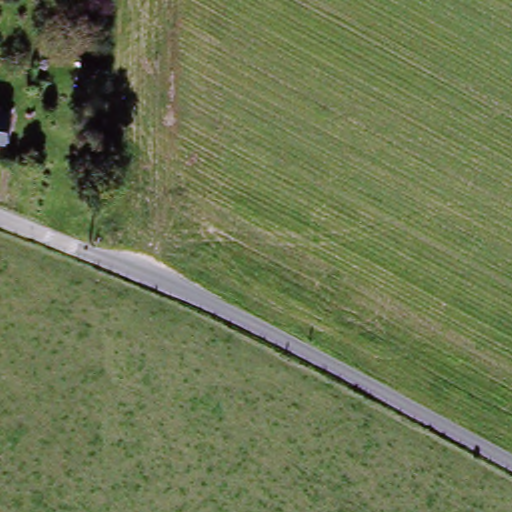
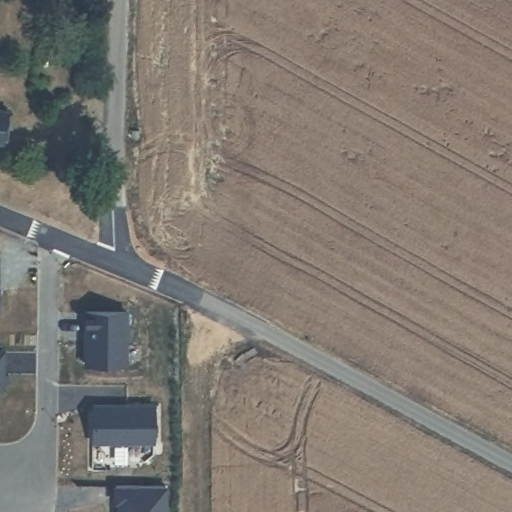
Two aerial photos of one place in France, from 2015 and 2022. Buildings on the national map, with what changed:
unchanged [(0,140),(0,107),(5,107),(2,140),(0,140)]
new [(86,348),(88,349),(88,334),(86,333),(86,316),(126,317),(125,369),(85,369),(86,348)]
new [(3,356),(2,391),(0,390),(0,356),(3,356)]
new [(94,409),(155,409),(155,447),(93,447),(94,409)]
new [(116,489),(169,490),(169,512),(119,512),(120,507),(116,507),(116,489)]

